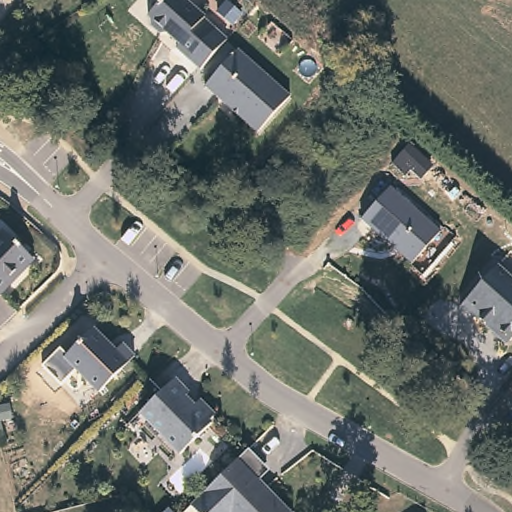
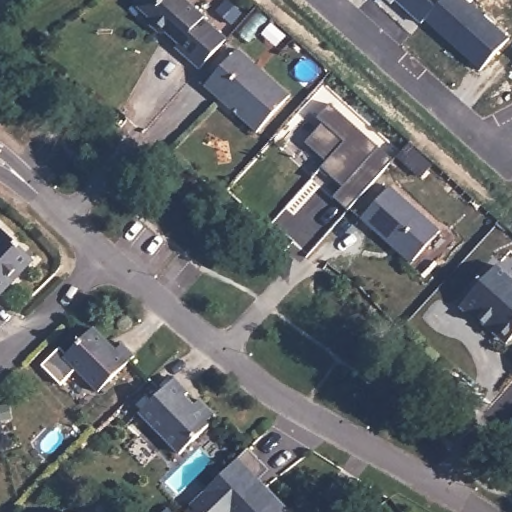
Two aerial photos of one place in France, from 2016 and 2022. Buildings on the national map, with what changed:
unchanged [(188,59),(175,47),(178,44),(167,33),(160,33),(149,24),(149,17),(147,15),(158,2),(155,0),(185,0),(204,16),(202,18),(214,29),(188,59)]
new [(389,2),(386,0),(392,0),(389,2)]
new [(424,17),(421,22),(397,0),(466,0),(508,37),(480,69),(424,17)]
unchanged [(242,50),(293,98),(256,131),(203,89),(242,50)]
new [(347,209),(336,195),(343,185),(322,168),(328,160),(303,137),(317,117),(329,105),(377,147),(390,158),(347,209)]
unchanged [(412,262),(363,217),(393,187),(441,232),(412,262)]
unchanged [(33,258),(21,270),(14,271),(7,278),(10,282),(0,293),(0,230),(2,229),(33,258)]
unchanged [(506,344),(458,305),(498,262),(512,275),(512,337),(506,344)]
unchanged [(63,358),(93,329),(115,351),(122,345),(134,356),(97,393),(63,358)]
unchanged [(174,380),(187,394),(184,397),(193,407),(199,401),(213,416),(207,422),(210,425),(179,455),(139,413),(174,380)]
unchanged [(232,465),(247,449),(247,450),(257,458),(264,465),(254,476),(289,512),(196,512),(190,506),(215,482),(232,465)]

